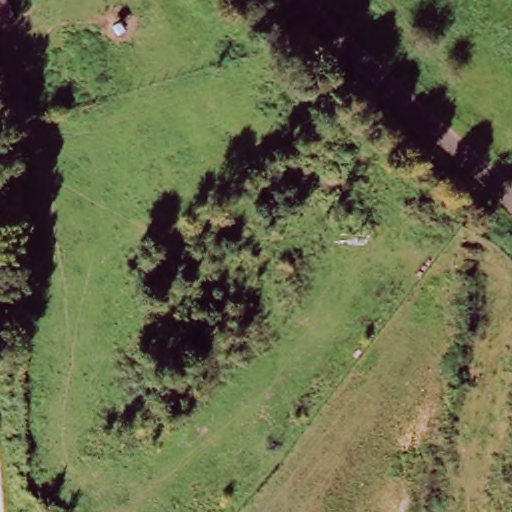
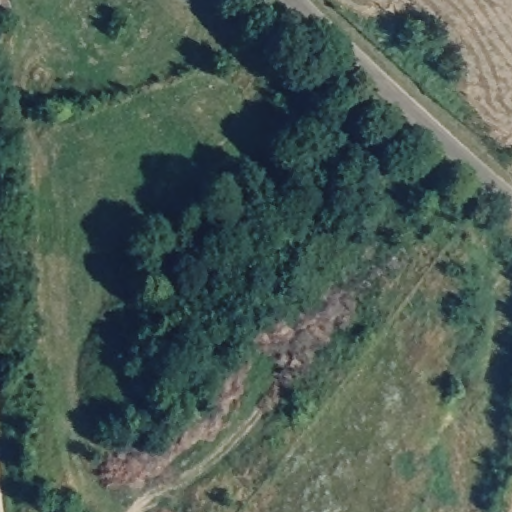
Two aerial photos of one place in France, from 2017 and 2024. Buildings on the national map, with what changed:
unchanged [(0,28),(0,0),(14,0),(22,20),(0,28)]

